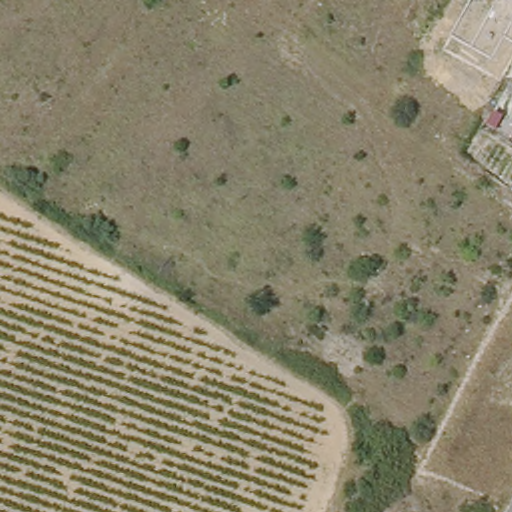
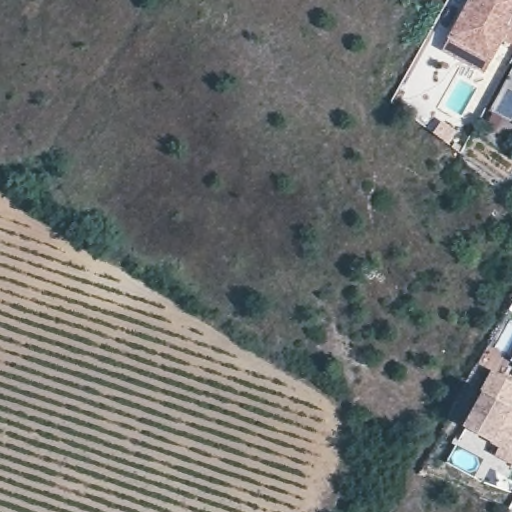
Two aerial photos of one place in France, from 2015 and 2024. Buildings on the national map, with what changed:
new [(486,73),(443,51),(471,0),(512,0),(512,42),(503,38),(486,73)]
new [(489,440),(454,421),(474,386),(469,383),(479,365),(512,382),(512,407),(512,463),(485,448),(489,440)]

